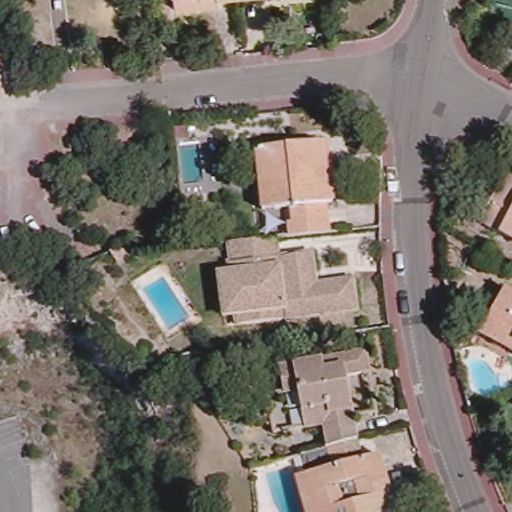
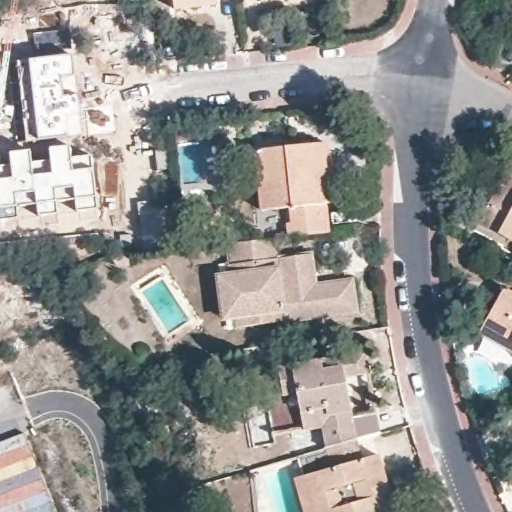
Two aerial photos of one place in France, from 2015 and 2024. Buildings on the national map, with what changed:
unchanged [(225,7),(174,14),(171,0),(224,0),(225,7)]
new [(29,60),(72,55),(78,95),(81,115),(82,134),(68,136),(40,140),(27,142),(17,62),(29,60)]
unchanged [(297,224),(296,208),(280,209),(257,210),(252,152),(261,152),(331,144),(334,160),(331,160),(332,178),(336,179),(338,202),(332,202),(335,234),(294,237),(293,224),(297,224)]
new [(10,154),(31,151),(32,164),(51,160),(50,149),(70,146),(72,157),(91,155),(93,169),(96,196),(98,209),(77,211),(76,199),(57,201),(59,214),(38,215),(37,204),(18,206),(19,218),(0,220),(0,168),(11,166),(10,154)]
unchanged [(488,225),(482,222),(492,205),(504,184),(508,177),(512,180),(512,238),(488,225)]
new [(167,202),(168,217),(171,217),(172,239),(140,240),(138,202),(167,202)]
unchanged [(308,255),(312,283),(349,279),(353,313),(230,329),(229,321),(215,323),(209,275),(223,273),(222,265),(225,265),(222,244),(272,239),(274,259),(308,255)]
unchanged [(128,254),(129,267),(117,269),(108,256),(128,254)]
unchanged [(488,332),(495,320),(512,289),(512,346),(488,332)]
unchanged [(326,448),(320,430),(301,433),(290,364),(364,355),(366,376),(346,380),(350,413),(345,415),(355,440),(326,448)]
unchanged [(306,475),(300,455),(326,448),(355,440),(361,461),(380,455),(394,512),(300,512),(290,480),(306,475)]

